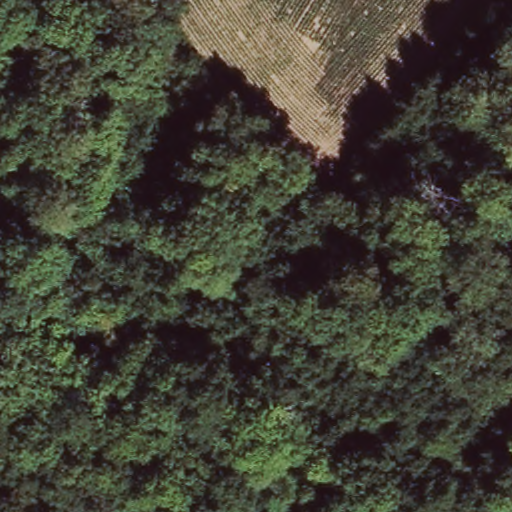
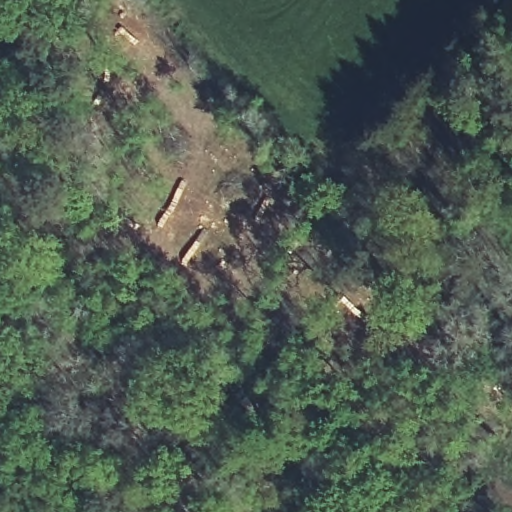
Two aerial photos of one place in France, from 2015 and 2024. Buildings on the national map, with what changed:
unchanged [(325,457),(339,463),(354,464),(348,501),(315,495),(325,457)]

